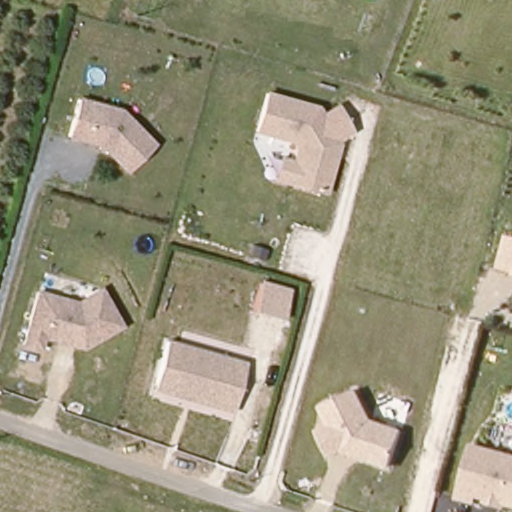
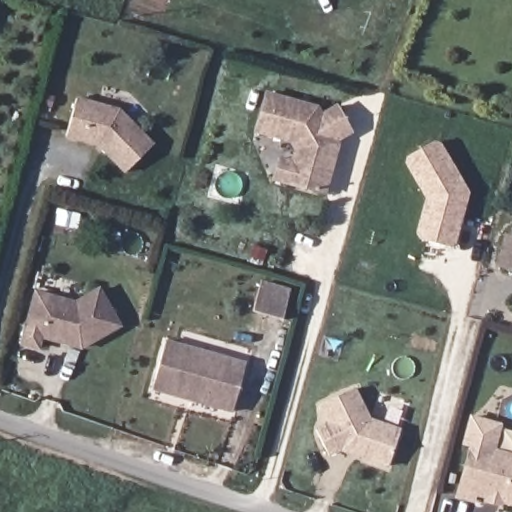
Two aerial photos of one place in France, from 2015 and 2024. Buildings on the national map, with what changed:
unchanged [(323,110),(339,101),(354,134),(340,143),(324,198),(270,184),(277,155),(291,158),(294,148),(290,143),(252,134),(264,90),(314,101),(323,110)]
unchanged [(153,143),(122,175),(96,147),(63,138),(73,95),(118,108),(153,143)]
new [(453,247),(415,237),(425,196),(404,160),(437,139),(469,191),(453,247)]
unchanged [(510,277),(512,269),(512,278),(510,277)]
unchanged [(282,320),(252,312),(260,281),(291,289),(282,320)]
unchanged [(121,327),(80,351),(42,340),(38,352),(16,346),(32,287),(74,299),(99,285),(121,327)]
unchanged [(167,339),(245,360),(231,411),(152,389),(167,339)]
unchanged [(390,468),(341,452),(328,458),(313,428),(325,422),(318,403),(355,387),(370,419),(401,427),(390,468)]
unchanged [(475,499),(474,505),(453,500),(467,440),(512,452),(512,508),(475,499)]

